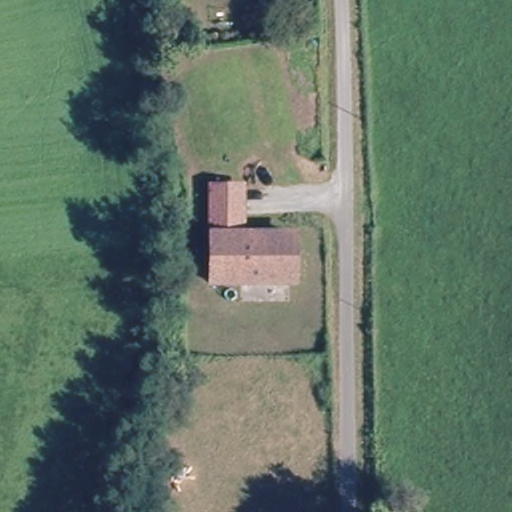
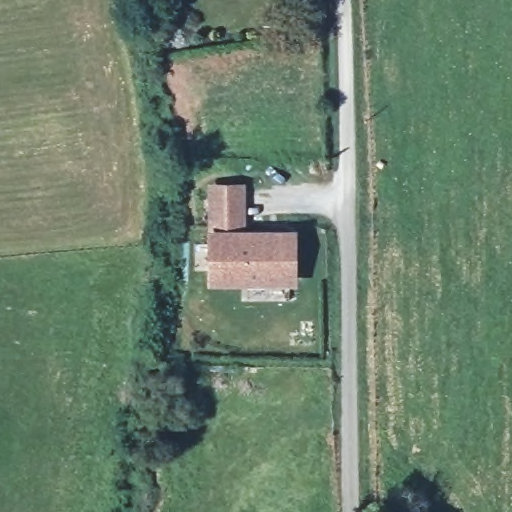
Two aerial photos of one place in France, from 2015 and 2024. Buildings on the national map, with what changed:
unchanged [(237,239),(286,240),(286,287),(207,286),(207,194),(237,193),(237,239)]

